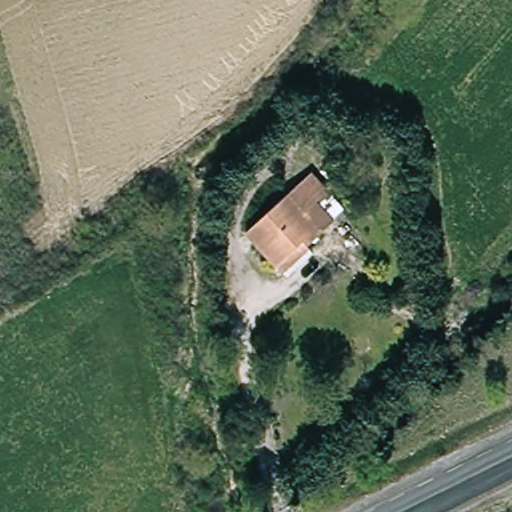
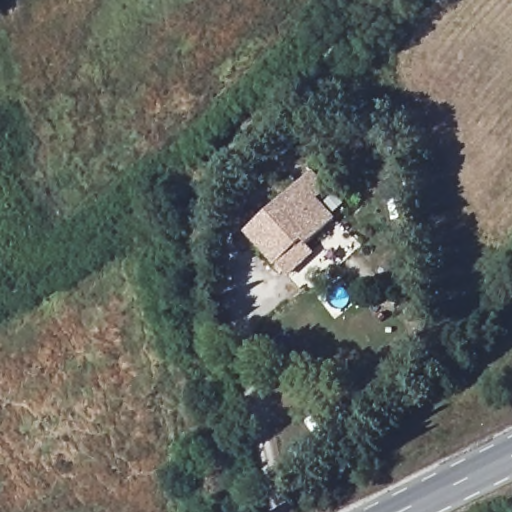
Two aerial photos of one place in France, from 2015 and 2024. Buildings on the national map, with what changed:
unchanged [(336,215),(311,238),(308,235),(305,233),(275,257),(248,225),(288,191),(302,205),(316,192),(332,209),(336,215)]

